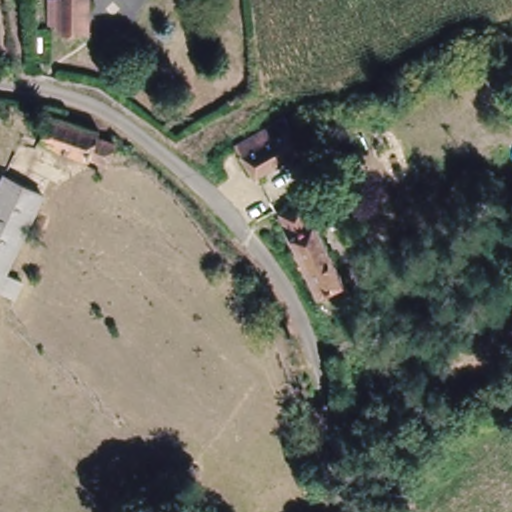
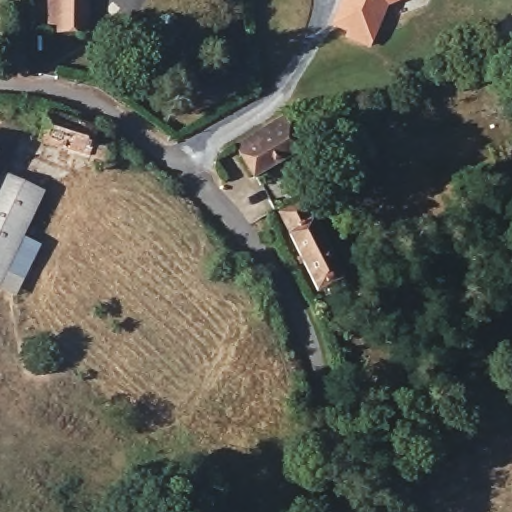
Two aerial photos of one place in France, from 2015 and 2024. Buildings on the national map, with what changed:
unchanged [(62,25),(52,24),(51,0),(62,0),(91,0),(91,31),(61,31),(62,25)]
new [(345,41),(348,33),(332,26),(344,0),(401,0),(386,6),(372,42),(368,50),(345,41)]
unchanged [(100,128),(98,136),(119,142),(111,164),(42,141),(50,114),(100,128)]
unchanged [(287,115),(307,147),(258,178),(238,146),(287,115)]
unchanged [(7,173),(47,191),(2,288),(0,287),(0,186),(7,173)]
unchanged [(304,199),(350,290),(332,299),(325,286),(316,291),(277,213),(304,199)]

